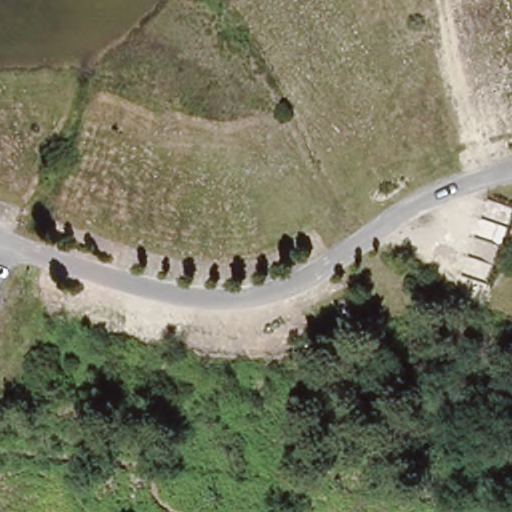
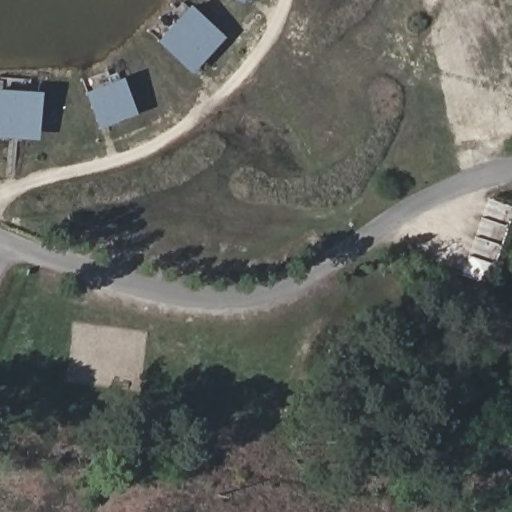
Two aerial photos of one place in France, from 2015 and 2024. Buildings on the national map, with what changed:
new [(147,30),(171,5),(167,1),(168,0),(181,0),(222,38),(193,70),(147,30)]
new [(233,0),(242,0),(240,4),(233,0)]
new [(115,65),(134,113),(100,126),(81,79),(115,65)]
new [(0,77),(31,79),(31,73),(40,74),(36,139),(0,137),(0,77)]

